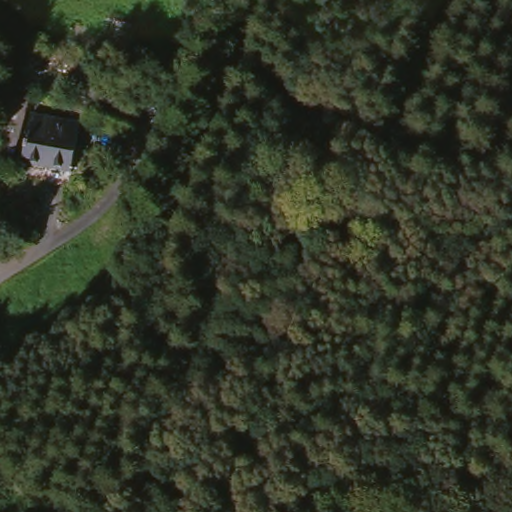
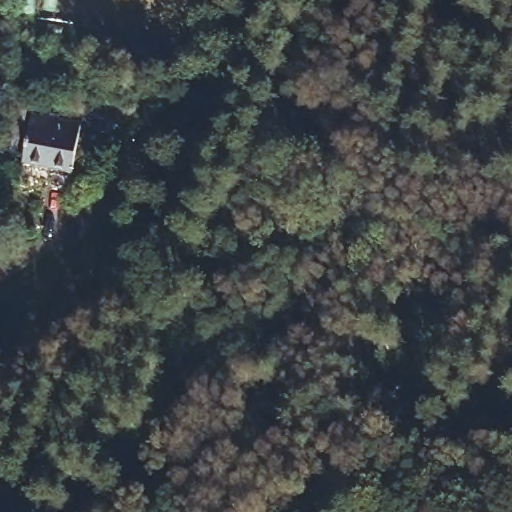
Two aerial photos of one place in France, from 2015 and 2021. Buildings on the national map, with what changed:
unchanged [(88,110),(90,96),(135,104),(130,140),(123,146),(96,141),(84,140),(88,110)]
unchanged [(24,100),(23,119),(72,127),(61,175),(0,165),(0,143),(11,99),(24,100)]

